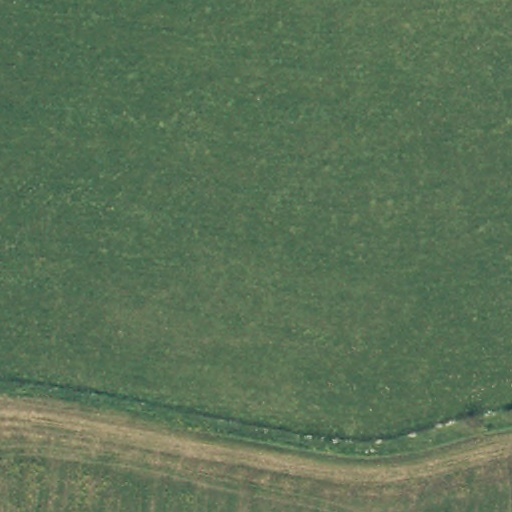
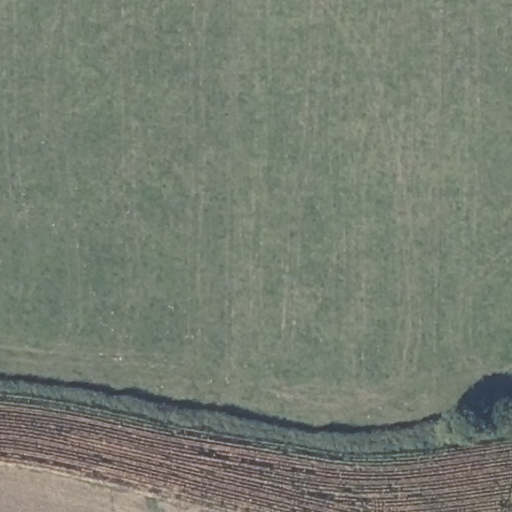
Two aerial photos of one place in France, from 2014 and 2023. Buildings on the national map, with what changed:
[]

